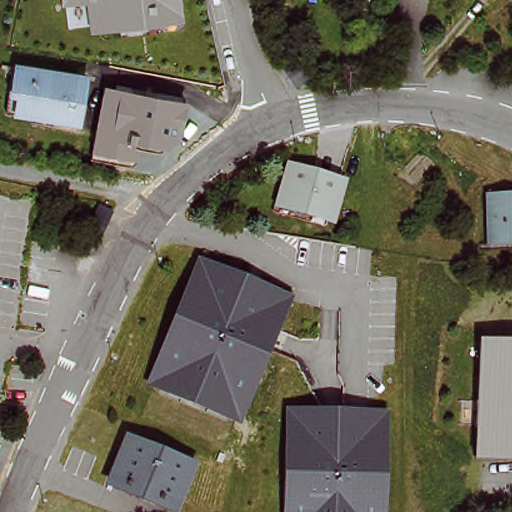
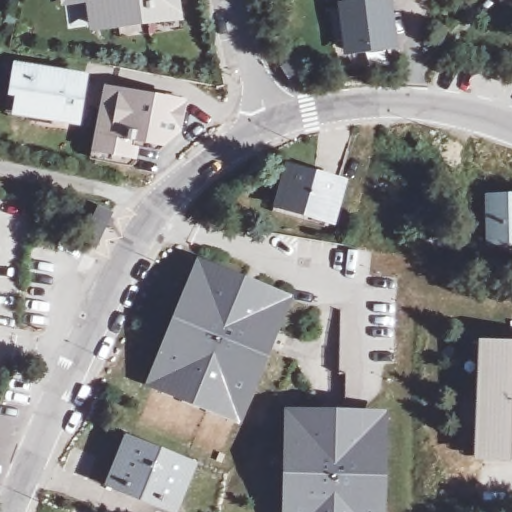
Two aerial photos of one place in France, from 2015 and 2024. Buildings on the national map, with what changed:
unchanged [(72,3),(72,0),(97,0),(72,3)]
unchanged [(185,18),(158,21),(157,15),(125,18),(127,24),(100,27),(97,0),(182,0),(185,18)]
new [(349,0),(392,0),(398,49),(342,56),(335,2),(349,0)]
unchanged [(14,75),(80,84),(74,129),(7,117),(14,75)]
unchanged [(187,100),(180,137),(161,151),(140,148),(137,162),(132,166),(90,159),(105,85),(187,100)]
unchanged [(295,188),(302,166),(346,179),(335,214),(333,222),(280,206),(287,185),(295,188)]
unchanged [(512,196),(512,238),(487,237),(487,196),(512,196)]
unchanged [(260,377),(246,413),(243,420),(159,387),(205,274),(290,307),(260,377)]
unchanged [(477,393),(485,394),(488,341),(512,343),(512,448),(483,446),(484,421),(475,420),(477,393)]
unchanged [(381,512),(290,512),(293,419),(383,422),(381,512)]
unchanged [(162,500),(163,498),(148,491),(136,487),(135,489),(119,483),(135,445),(194,469),(182,497),(178,507),(162,500)]

